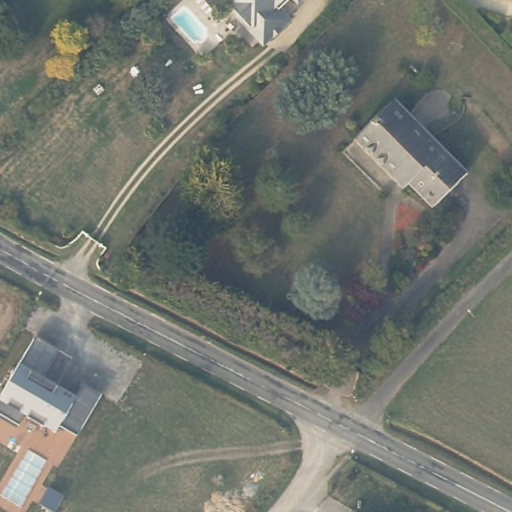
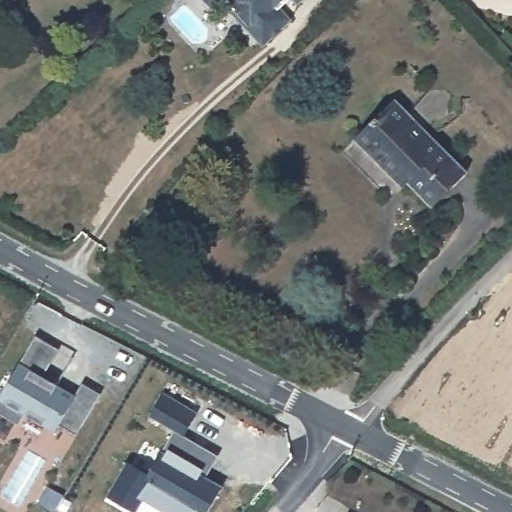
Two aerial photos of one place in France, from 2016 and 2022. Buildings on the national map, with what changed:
unchanged [(215,10),(206,0),(280,0),(273,6),(283,19),(267,34),(260,40),(225,1),(215,10)]
unchanged [(294,0),(300,0),(297,3),(294,0)]
unchanged [(461,174),(429,207),(406,184),(398,190),(349,140),(388,102),(461,174)]
unchanged [(100,394),(77,434),(60,425),(56,432),(26,414),(19,424),(0,413),(0,399),(21,363),(36,337),(58,349),(43,376),(77,396),(82,383),(100,394)]
new [(128,461),(150,474),(168,447),(163,444),(174,427),(151,414),(165,391),(198,413),(185,434),(219,455),(207,477),(220,486),(205,512),(168,512),(144,498),(138,511),(108,494),(128,461)]
demolished [(80,512),(13,512),(35,481),(80,512)]

